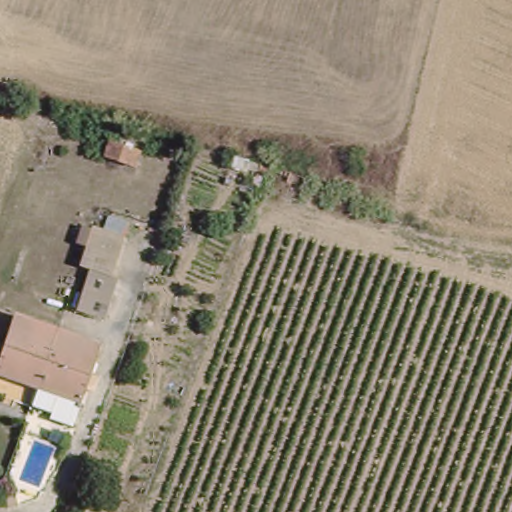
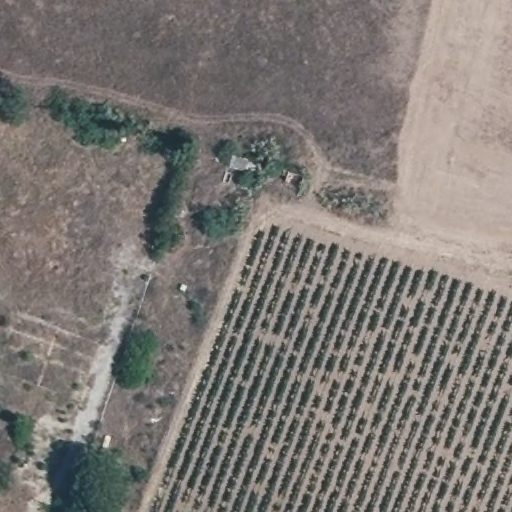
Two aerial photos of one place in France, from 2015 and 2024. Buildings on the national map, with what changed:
demolished [(136,165),(106,157),(110,142),(140,150),(136,165)]
demolished [(118,280),(123,282),(110,322),(83,313),(95,273),(85,270),(91,251),(83,248),(88,230),(98,233),(100,231),(130,242),(118,280)]
demolished [(85,387),(73,425),(53,418),(55,412),(35,404),(40,387),(0,372),(0,365),(4,354),(0,353),(0,341),(7,344),(17,314),(100,344),(90,374),(85,387)]
unchanged [(0,506),(0,497),(1,492),(16,489),(19,507),(0,506)]

